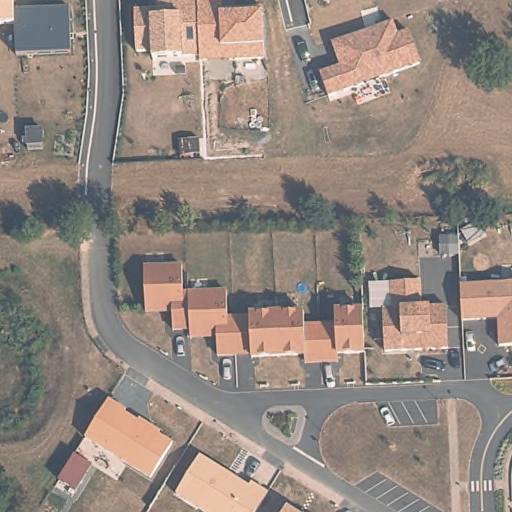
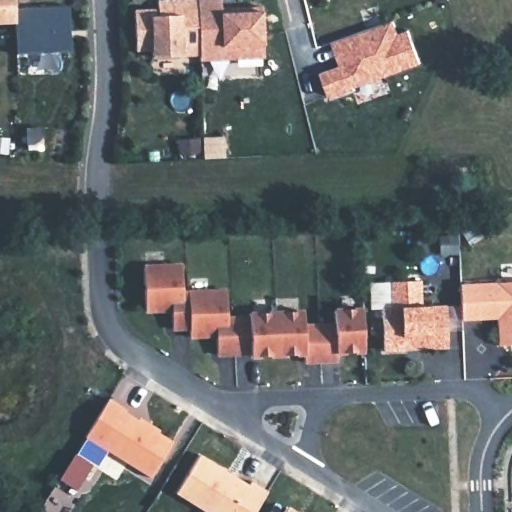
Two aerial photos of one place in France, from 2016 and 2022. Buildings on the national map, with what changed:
unchanged [(15,7),(68,5),(72,51),(16,54),(15,25),(0,26),(0,0),(15,0),(15,7)]
unchanged [(135,10),(158,8),(158,0),(223,0),(224,11),(262,9),(264,59),(200,63),(199,56),(151,57),(152,51),(136,52),(135,10)]
unchanged [(331,97),(320,72),(340,65),(332,43),(392,21),(398,36),(409,30),(420,65),(331,97)]
unchanged [(338,361),(305,363),(305,355),(252,357),(252,354),(218,355),(217,336),(190,337),(190,329),(173,329),(172,310),(146,311),(144,267),(182,266),(183,293),(226,292),(227,319),(250,318),(249,315),(304,313),(304,327),(335,326),(335,312),(363,311),(364,337),(365,353),(338,354),(338,361)]
unchanged [(385,352),(383,310),(392,309),(391,284),(421,282),(422,308),(447,307),(448,350),(415,351),(408,351),(385,352)]
unchanged [(461,286),(512,284),(512,347),(500,347),(499,320),(480,321),(463,322),(461,286)]
unchanged [(124,407),(138,416),(139,413),(148,419),(160,426),(158,429),(172,438),(150,473),(86,433),(97,416),(110,395),(126,405),(124,407)]
unchanged [(221,469),(231,475),(249,486),(251,482),(268,493),(265,499),(257,512),(204,512),(176,494),(200,455),(221,469)]
unchanged [(295,512),(284,512),(287,507),(295,512)]

